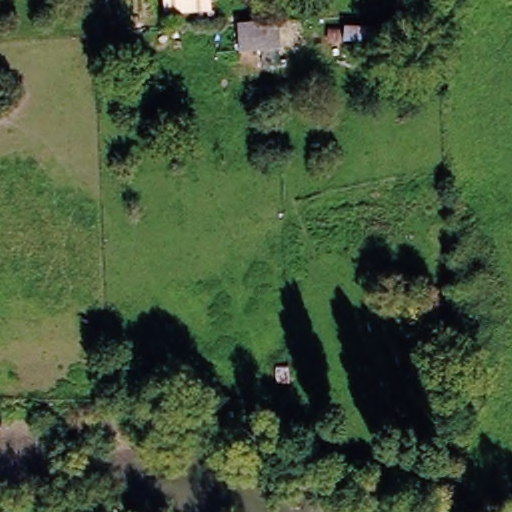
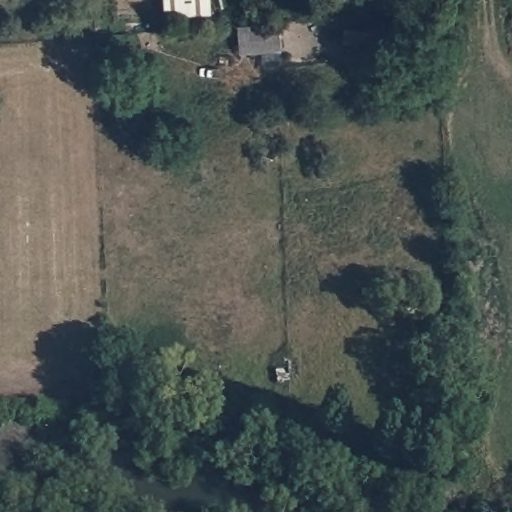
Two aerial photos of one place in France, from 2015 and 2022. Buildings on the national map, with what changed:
unchanged [(165,16),(164,0),(210,0),(211,14),(165,16)]
unchanged [(275,20),(275,49),(234,53),(232,23),(275,20)]

